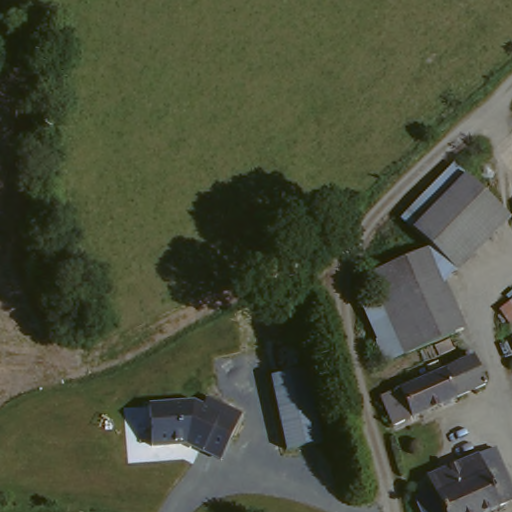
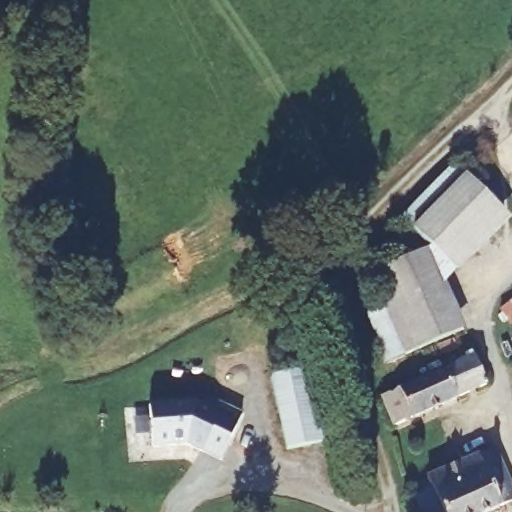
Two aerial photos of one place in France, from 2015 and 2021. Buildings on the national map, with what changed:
unchanged [(407,224),(404,220),(453,163),(461,168),(465,172),(502,203),(455,261),(414,229),(407,224)]
unchanged [(377,273),(427,251),(462,329),(414,352),(377,273)]
unchanged [(497,311),(512,301),(512,324),(509,325),(497,311)]
unchanged [(512,344),(512,348),(510,345),(512,344)]
unchanged [(409,385),(475,356),(487,381),(396,423),(387,395),(409,385)]
unchanged [(305,375),(318,448),(283,455),(270,381),(305,375)]
unchanged [(195,397),(197,390),(247,407),(226,465),(186,450),(153,452),(146,400),(195,397)]
unchanged [(512,481),(512,506),(500,512),(446,512),(432,480),(499,450),(512,481)]

